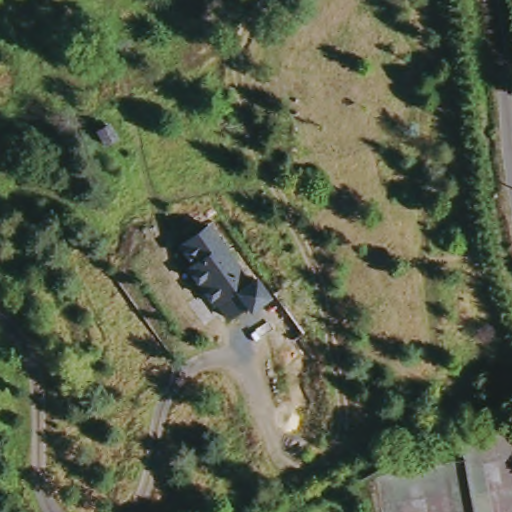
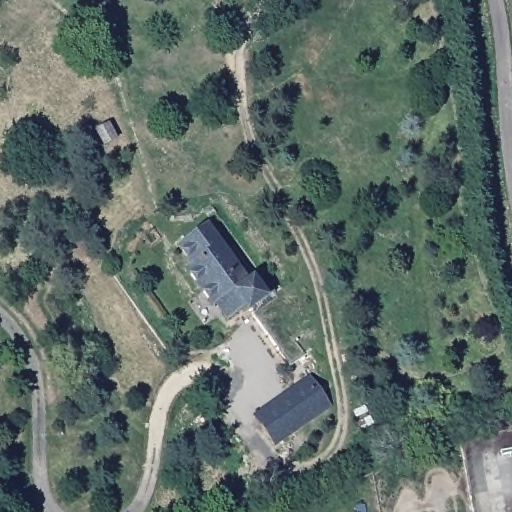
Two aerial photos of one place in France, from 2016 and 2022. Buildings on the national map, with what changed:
unchanged [(211,228),(253,281),(257,278),(271,294),(254,308),(250,304),(234,318),(223,303),(220,305),(192,270),(197,265),(185,249),(211,228)]
new [(307,381),(327,408),(277,442),(257,416),(307,381)]

